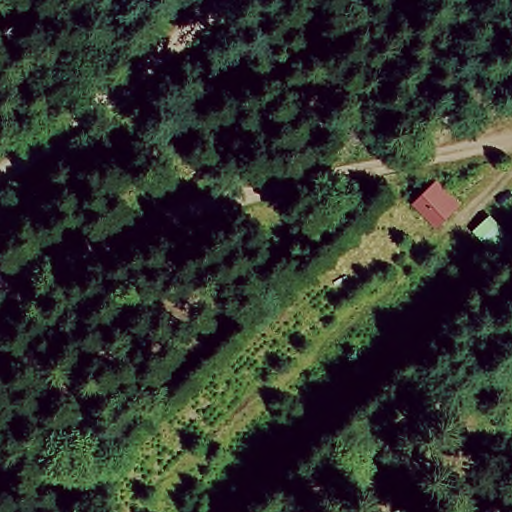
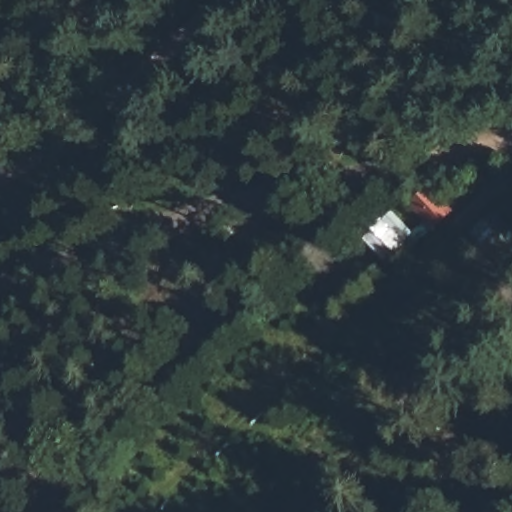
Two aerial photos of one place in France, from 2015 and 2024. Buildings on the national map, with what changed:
unchanged [(426,237),(400,202),(427,180),(455,213),(426,237)]
unchanged [(464,241),(491,218),(512,243),(512,254),(487,272),(464,241)]

